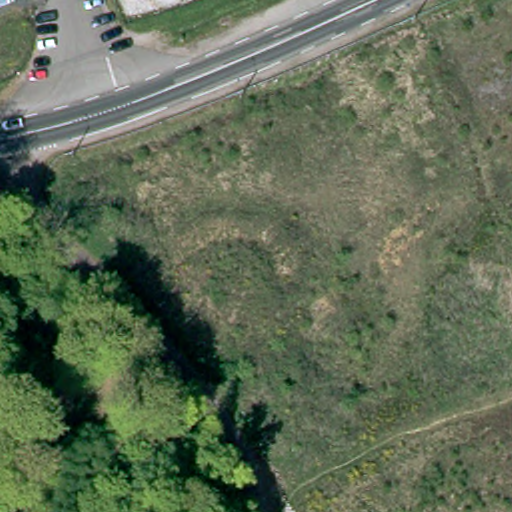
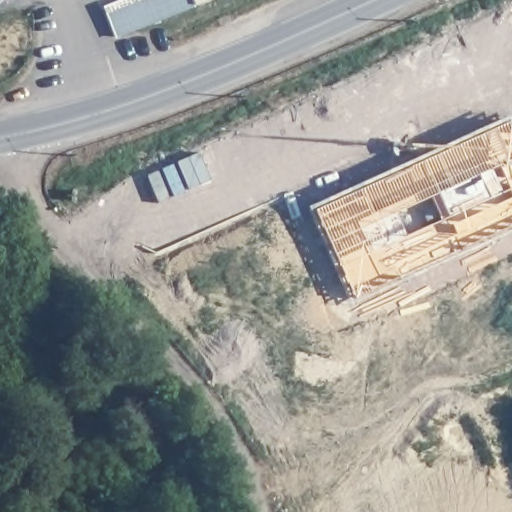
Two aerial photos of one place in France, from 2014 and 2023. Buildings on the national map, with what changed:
unchanged [(0,7),(0,0),(8,0),(9,4),(0,7)]
new [(115,39),(103,8),(123,0),(192,0),(195,7),(115,39)]
new [(511,115),(512,118),(512,232),(354,304),(307,207),(511,115)]

